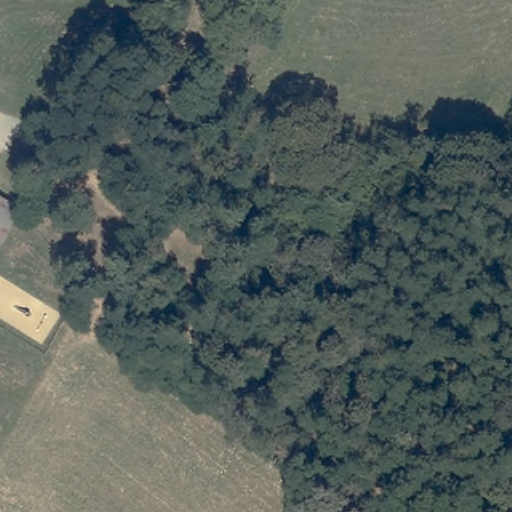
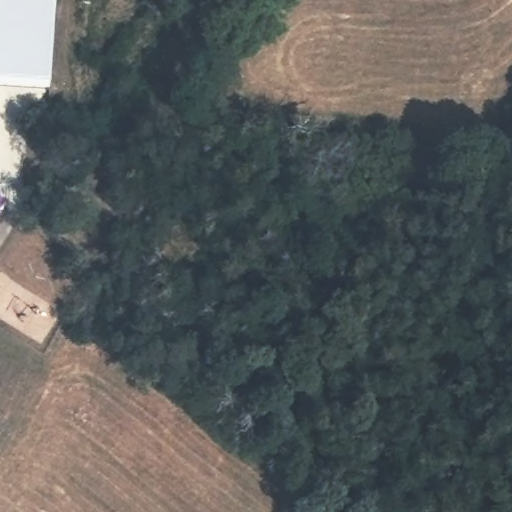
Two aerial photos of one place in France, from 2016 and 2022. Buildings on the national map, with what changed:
new [(50,80),(0,77),(0,0),(55,0),(50,80)]
demolished [(0,150),(0,118),(14,125),(0,150)]
unchanged [(0,197),(1,197),(0,199),(0,197)]

